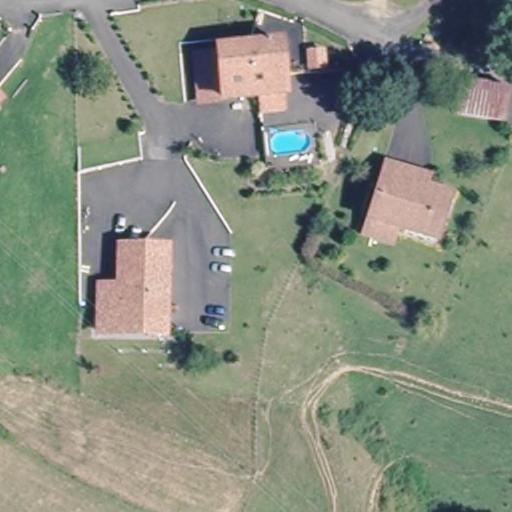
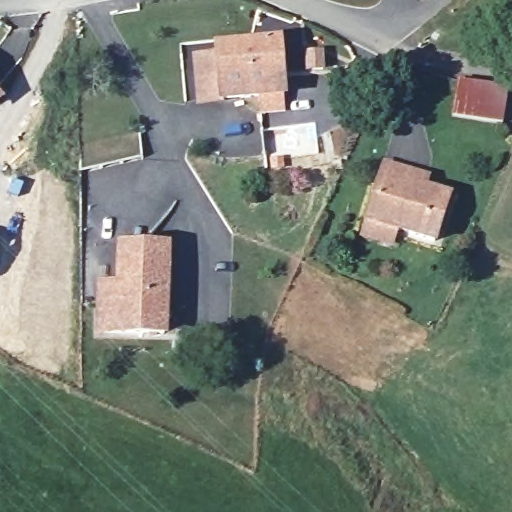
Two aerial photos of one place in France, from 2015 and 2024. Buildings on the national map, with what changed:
unchanged [(260,113),(258,97),(223,100),(223,97),(201,100),(197,54),(219,52),(219,50),(280,45),(281,47),(283,75),(283,77),(284,92),(285,95),(286,111),(260,113)]
unchanged [(308,56),(322,55),(323,70),(309,71),(308,56)]
unchanged [(459,82),(508,90),(503,125),(453,117),(459,82)]
unchanged [(80,147),(140,135),(143,159),(80,172),(80,147)]
unchanged [(368,221),(369,219),(372,220),(378,200),(373,199),(376,187),(383,166),(411,174),(427,180),(424,189),(449,197),(449,200),(446,199),(433,240),(435,240),(435,242),(397,231),(392,245),(364,236),(368,221)]
unchanged [(116,285),(117,247),(163,250),(159,333),(151,333),(151,336),(144,336),(145,333),(95,331),(96,304),(97,285),(116,285)]

